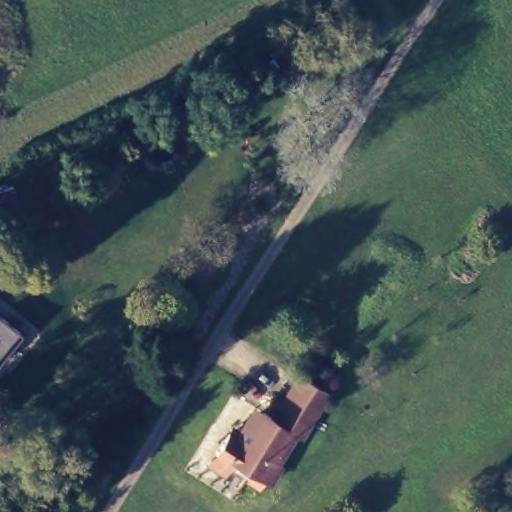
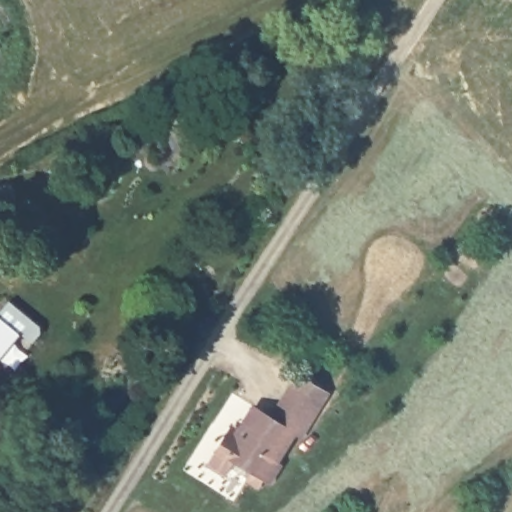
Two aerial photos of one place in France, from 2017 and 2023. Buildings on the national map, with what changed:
unchanged [(256,481),(252,478),(257,470),(238,462),(236,464),(229,474),(210,465),(211,463),(216,455),(231,431),(234,426),(241,429),(246,419),(253,406),(262,410),(272,415),(280,401),(296,371),(321,383),(329,386),(302,432),(296,429),(281,458),(283,459),(274,477),(267,477),(262,484),(256,481)]

